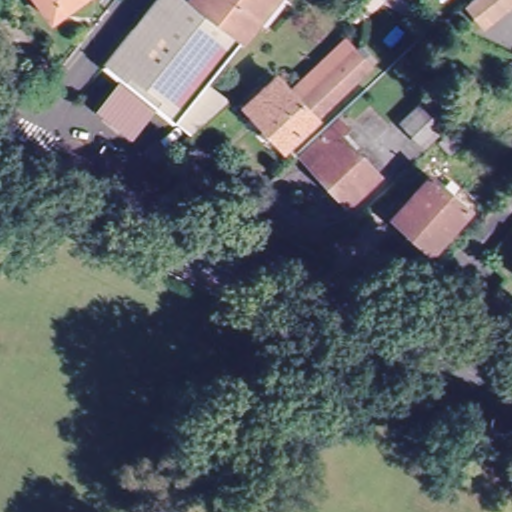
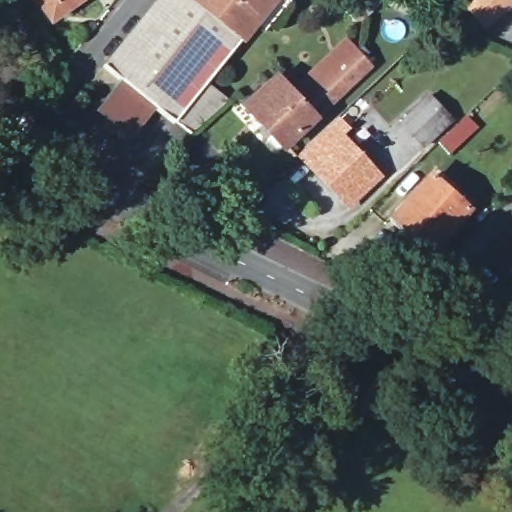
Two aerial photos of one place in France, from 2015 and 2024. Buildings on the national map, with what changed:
unchanged [(44,17),(32,0),(75,0),(58,13),(47,21),(44,17)]
unchanged [(148,0),(198,0),(238,33),(201,80),(222,97),(184,129),(151,103),(115,75),(99,62),(148,0)]
unchanged [(250,18),(238,33),(198,0),(286,0),(263,29),(250,18)]
unchanged [(340,7),(347,1),(348,0),(400,0),(419,10),(414,19),(382,3),(364,19),(360,15),(353,21),(340,7)]
unchanged [(479,22),(462,1),(463,0),(507,0),(479,22)]
unchanged [(367,54),(363,58),(370,67),(284,147),(247,108),(278,80),(291,94),(302,83),(347,41),(355,51),(360,47),(367,54)]
unchanged [(127,135),(90,106),(115,75),(151,103),(127,135)]
unchanged [(429,137),(406,113),(434,86),(457,110),(429,137)]
unchanged [(453,145),(443,133),(462,116),(472,128),(453,145)]
unchanged [(347,131),(341,137),(378,177),(348,206),(313,169),(309,164),(302,156),(304,155),(339,122),(347,131)]
unchanged [(399,201),(429,167),(467,201),(431,240),(414,225),(394,207),(399,201)]
unchanged [(510,254),(512,251),(512,255),(510,254)]

